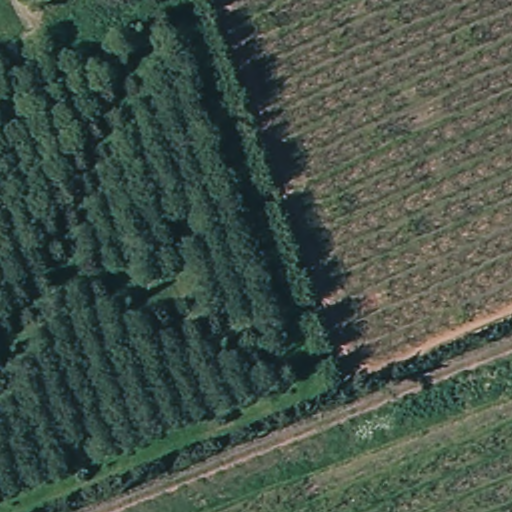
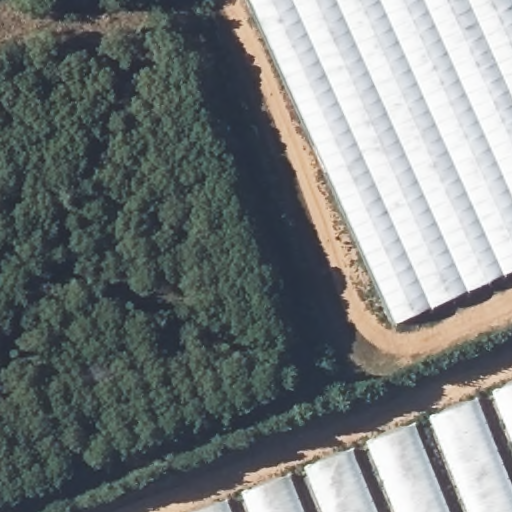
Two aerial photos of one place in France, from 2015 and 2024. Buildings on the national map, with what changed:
new [(511,0),(512,1),(512,272),(393,325),(246,0),(511,0)]
new [(512,384),(512,512),(195,512),(512,384)]

